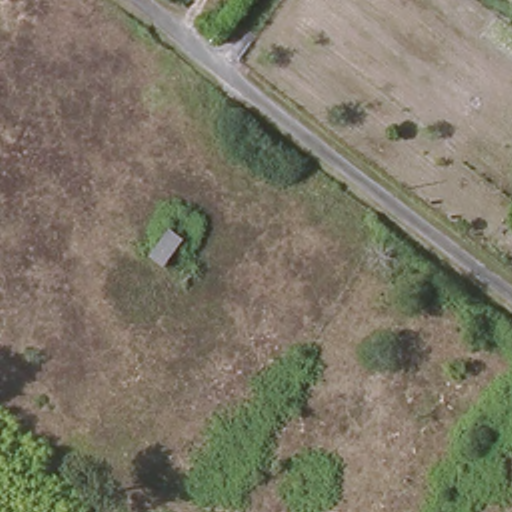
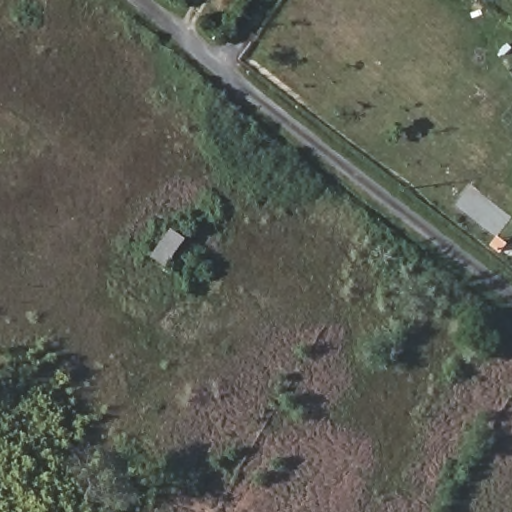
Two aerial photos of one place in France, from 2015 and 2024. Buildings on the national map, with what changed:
unchanged [(189,242),(167,269),(152,259),(172,232),(189,242)]

